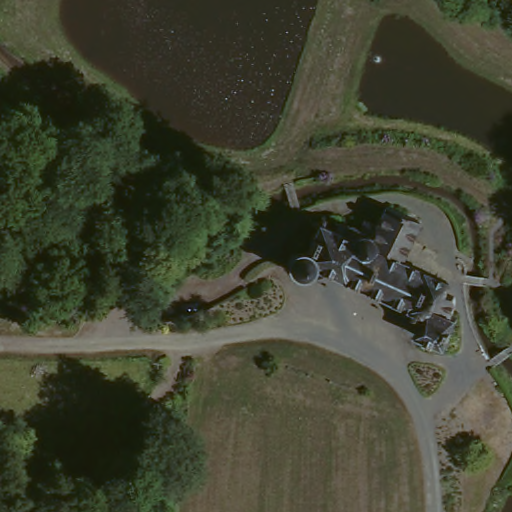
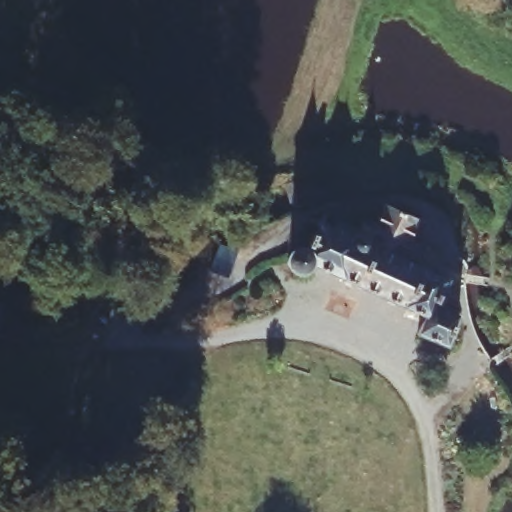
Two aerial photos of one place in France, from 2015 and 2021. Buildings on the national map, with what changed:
unchanged [(462,323),(451,351),(419,339),(428,315),(319,273),(315,276),(311,279),(306,280),(302,279),(299,276),(297,274),(296,270),(296,267),(297,262),(299,259),(301,257),(304,255),(308,255),(318,229),(308,225),(311,219),(321,222),(325,214),(331,216),(328,224),(336,227),(340,219),(363,227),(368,215),(380,220),(388,200),(423,214),(409,252),(458,270),(455,279),(460,281),(447,318),(462,323)]

